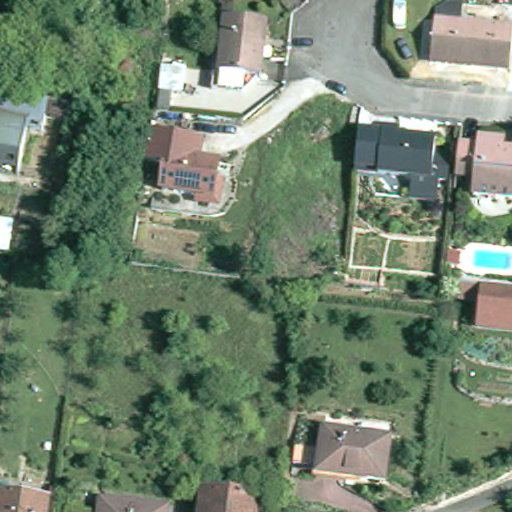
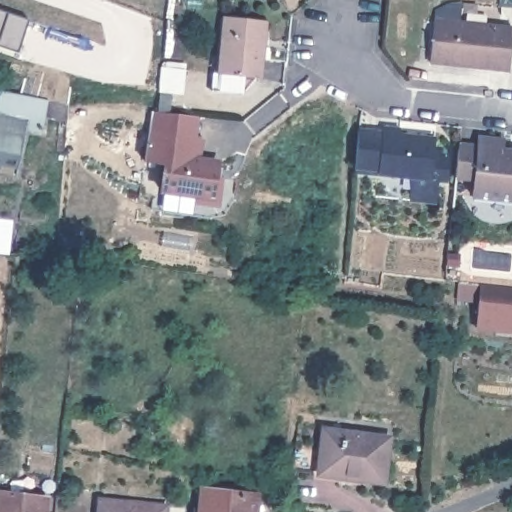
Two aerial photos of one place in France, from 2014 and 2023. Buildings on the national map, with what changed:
new [(502,5),(502,0),(512,0),(512,6),(502,5)]
new [(29,20),(18,53),(0,47),(0,11),(29,20)]
unchanged [(222,67),(228,11),(269,16),(264,72),(259,71),(245,87),(214,84),(216,66),(222,67)]
unchanged [(512,25),(508,68),(430,61),(433,19),(512,25)]
unchanged [(56,115),(42,114),(40,129),(24,127),(17,163),(0,160),(0,114),(3,115),(8,90),(46,98),(58,99),(56,115)]
unchanged [(197,118),(195,132),(201,134),(199,155),(219,157),(213,195),(162,187),(165,161),(145,157),(151,110),(197,118)]
unchanged [(409,190),(410,177),(355,171),(359,130),(380,132),(381,128),(398,130),(398,135),(429,137),(429,145),(434,146),(433,157),(444,159),(441,180),(432,180),(430,194),(409,190)]
unchanged [(479,137),(504,140),(504,150),(512,152),(512,198),(472,194),(474,179),(455,177),(459,144),(478,145),(479,137)]
unchanged [(17,211),(11,253),(0,253),(0,210),(17,211)]
unchanged [(476,298),(454,296),(454,295),(456,280),(478,282),(512,285),(512,319),(475,315),(476,298)]
unchanged [(475,315),(512,319),(512,329),(474,325),(475,315)]
unchanged [(327,467),(301,463),(303,446),(329,450),(333,429),(396,438),(389,482),(325,472),(327,467)]
unchanged [(166,500),(198,505),(201,485),(261,492),(258,512),(164,512),(166,500)]
unchanged [(51,495),(48,512),(0,512),(0,487),(51,495)]
unchanged [(164,512),(80,512),(83,490),(166,500),(164,512)]

